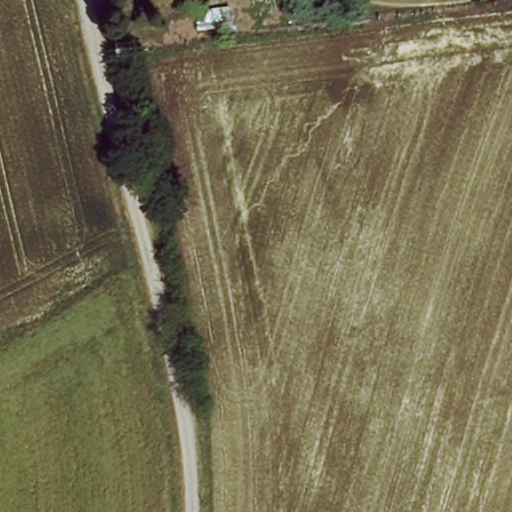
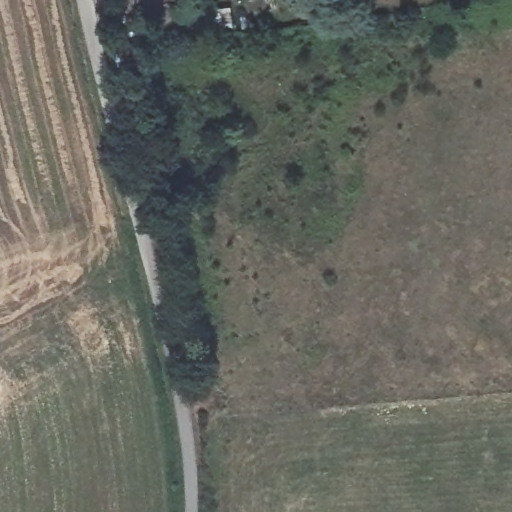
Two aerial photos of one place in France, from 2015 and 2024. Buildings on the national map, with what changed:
[]

